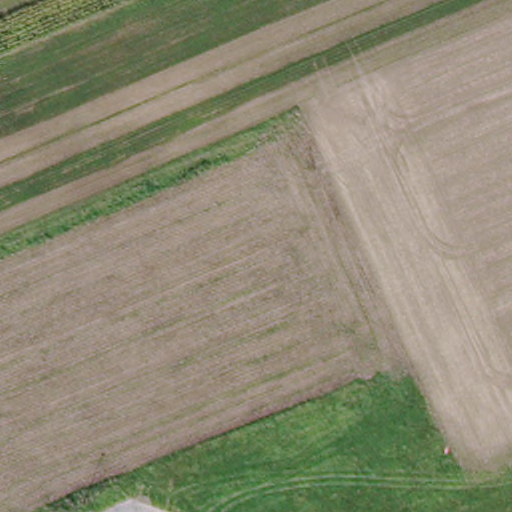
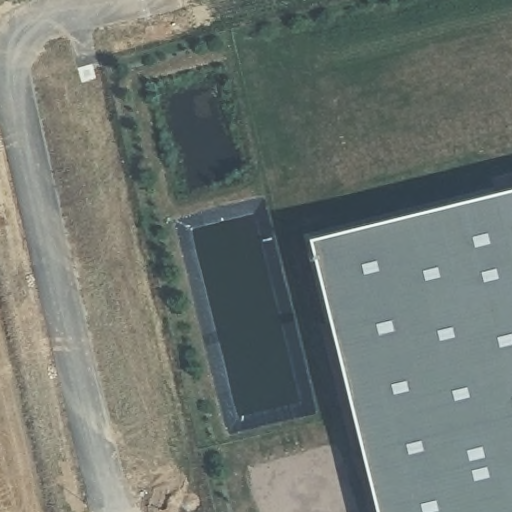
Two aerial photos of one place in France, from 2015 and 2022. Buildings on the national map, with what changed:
new [(512,187),(512,512),(378,512),(310,236),(512,187)]

